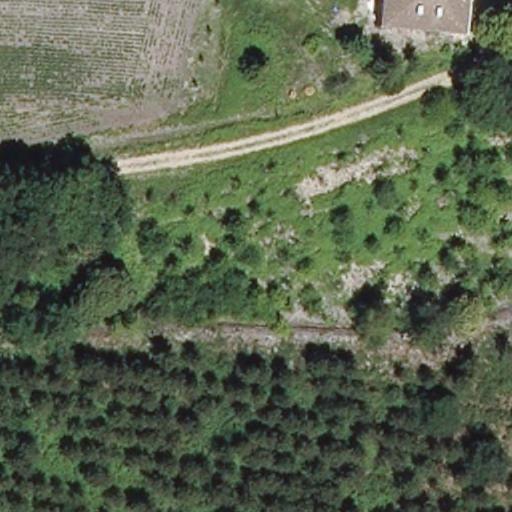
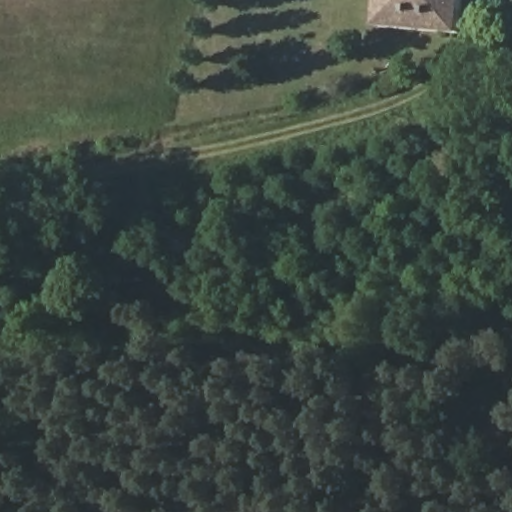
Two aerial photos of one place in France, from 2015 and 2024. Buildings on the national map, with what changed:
unchanged [(374,31),(376,0),(458,0),(455,36),(374,31)]

